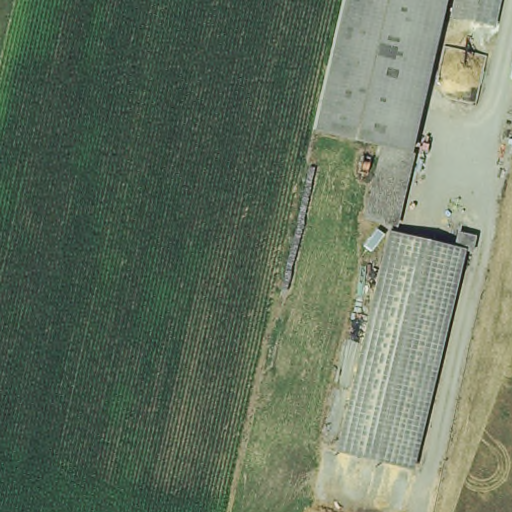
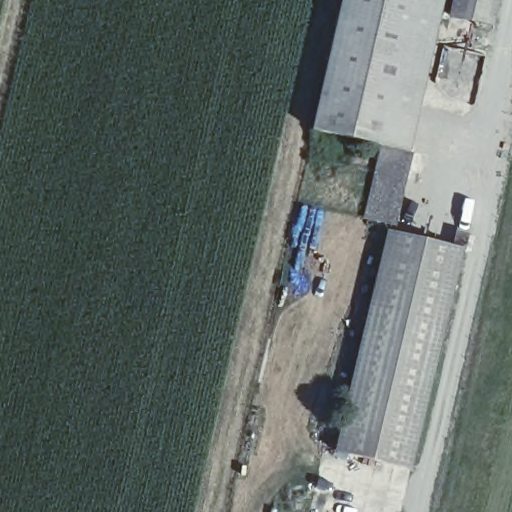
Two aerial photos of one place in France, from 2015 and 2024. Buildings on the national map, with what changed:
unchanged [(383,152),(372,149),(305,133),(335,0),(418,0),(383,152)]
unchanged [(418,0),(450,0),(446,19),(440,17),(407,157),(401,156),(383,152),(418,0)]
unchanged [(490,31),(446,19),(450,0),(497,0),(490,31)]
unchanged [(401,156),(382,231),(355,224),(372,149),(383,152),(401,156)]
unchanged [(380,235),(453,252),(400,473),(327,455),(380,235)]

